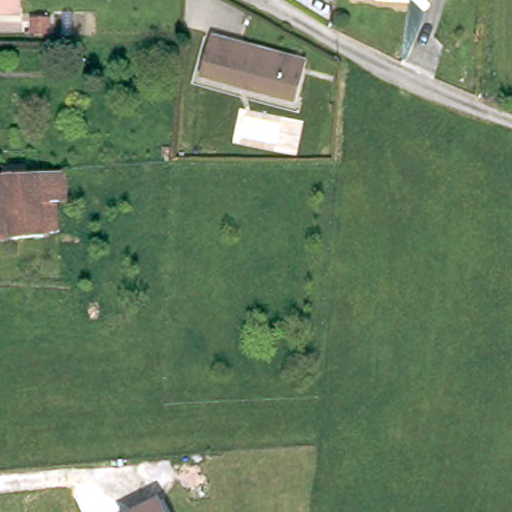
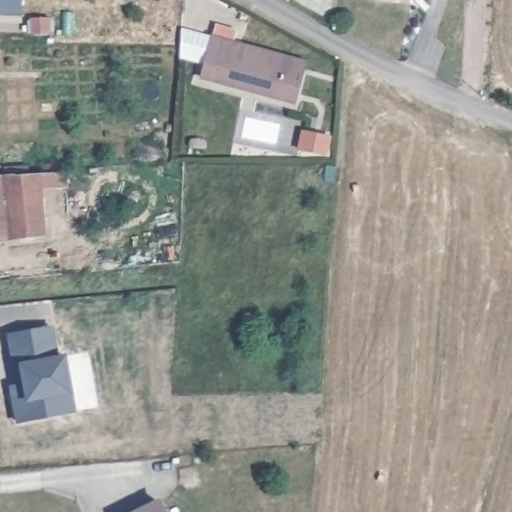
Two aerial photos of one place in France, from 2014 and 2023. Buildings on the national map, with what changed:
unchanged [(26,11),(0,11),(0,0),(26,0),(26,11)]
demolished [(129,1),(125,0),(129,0),(129,1)]
unchanged [(209,66),(217,40),(308,64),(298,102),(251,90),(206,78),(209,66)]
unchanged [(4,173),(4,167),(26,165),(26,172),(38,171),(43,233),(5,238),(0,239),(0,169),(0,173),(4,173)]
unchanged [(38,171),(64,169),(66,200),(53,201),(56,231),(43,233),(38,171)]
demolished [(123,308),(125,338),(95,341),(93,310),(123,308)]
new [(50,327),(55,356),(63,355),(73,412),(17,423),(10,386),(17,384),(8,335),(50,327)]
unchanged [(166,512),(143,512),(161,503),(166,512)]

